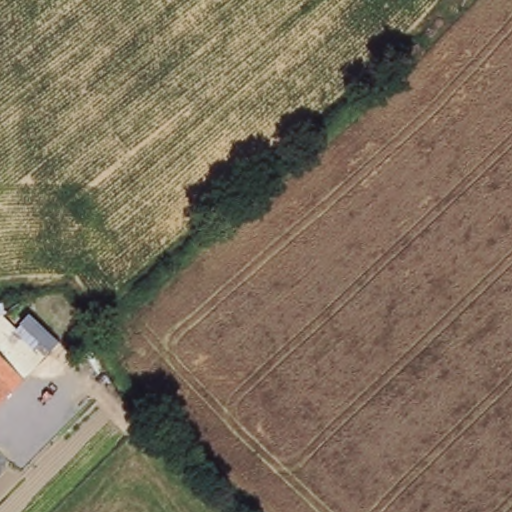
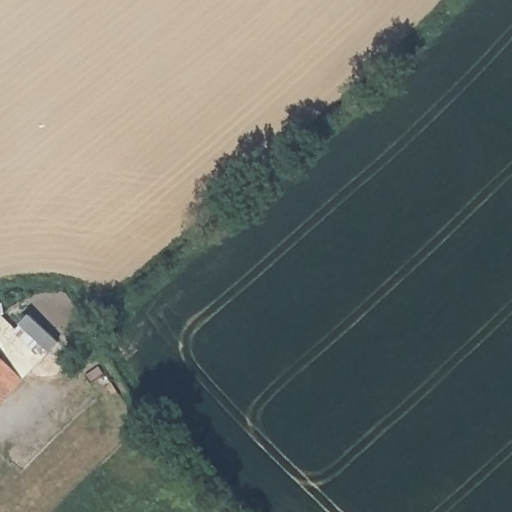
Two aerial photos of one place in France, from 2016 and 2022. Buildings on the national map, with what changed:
unchanged [(4,315),(45,364),(26,381),(0,407),(0,316),(4,315)]

